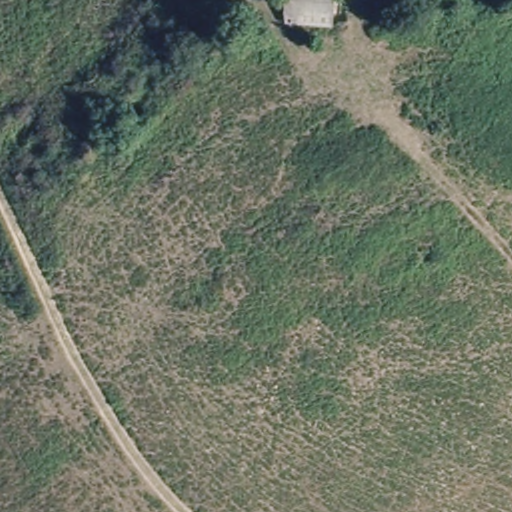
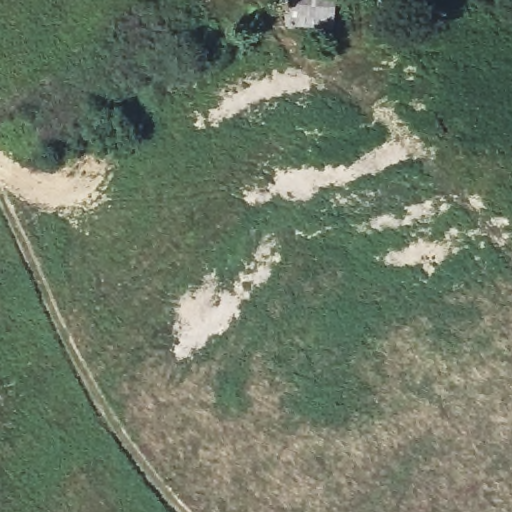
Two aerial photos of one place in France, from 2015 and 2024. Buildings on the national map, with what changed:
unchanged [(288,0),(335,0),(332,25),(287,21),(288,0)]

